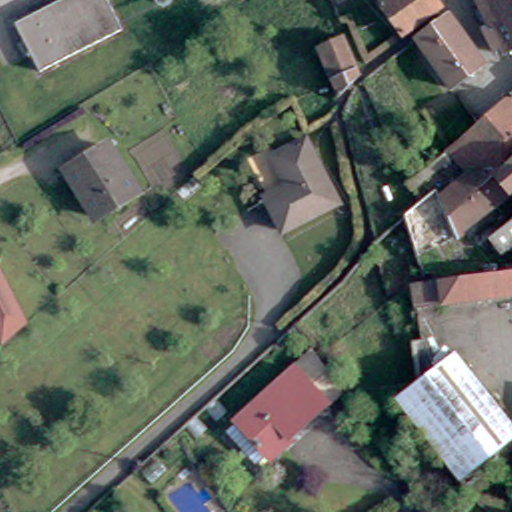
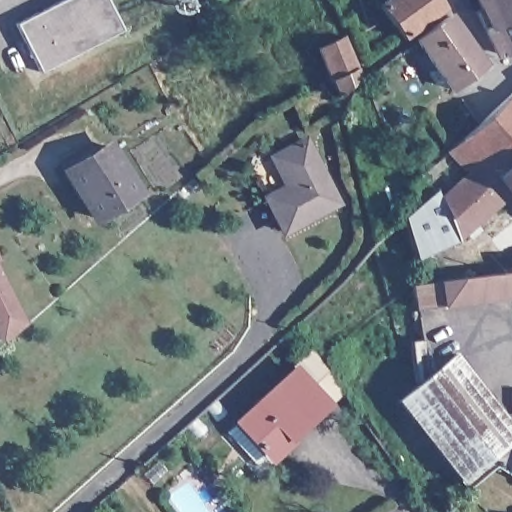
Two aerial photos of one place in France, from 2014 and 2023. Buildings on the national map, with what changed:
unchanged [(123,33),(43,74),(16,24),(65,0),(106,0),(123,33)]
unchanged [(391,1),(393,0),(440,0),(446,9),(404,38),(380,5),(376,0),(390,0),(391,1)]
unchanged [(486,32),(488,31),(479,13),(484,10),(479,0),(512,0),(512,53),(508,55),(500,59),(486,32)]
unchanged [(452,17),(488,66),(454,89),(419,41),(452,17)]
unchanged [(341,35),(358,70),(359,73),(338,94),(329,72),(316,45),(341,35)]
unchanged [(447,219),(443,204),(471,181),(453,157),(436,171),(445,183),(421,201),(411,186),(412,185),(478,134),(479,133),(512,102),(512,165),(498,178),(475,198),(448,222),(447,219)]
unchanged [(271,156),(306,139),(338,201),(283,229),(265,198),(286,187),(271,156)]
unchanged [(134,197),(94,222),(67,176),(108,152),(134,197)]
unchanged [(510,193),(498,178),(512,165),(512,191),(510,193)]
unchanged [(410,219),(440,196),(443,204),(447,219),(448,222),(456,247),(414,261),(405,223),(410,219)]
unchanged [(512,215),(512,246),(499,256),(488,243),(508,225),(504,221),(512,215)]
unchanged [(414,288),(466,278),(495,273),(494,269),(512,267),(512,294),(443,307),(427,311),(418,312),(414,288)]
unchanged [(1,340),(0,339),(0,270),(26,318),(1,340)]
unchanged [(511,433),(443,470),(398,389),(464,352),(511,433)]
unchanged [(224,435),(294,375),(314,359),(336,396),(323,407),(253,468),(224,435)]

